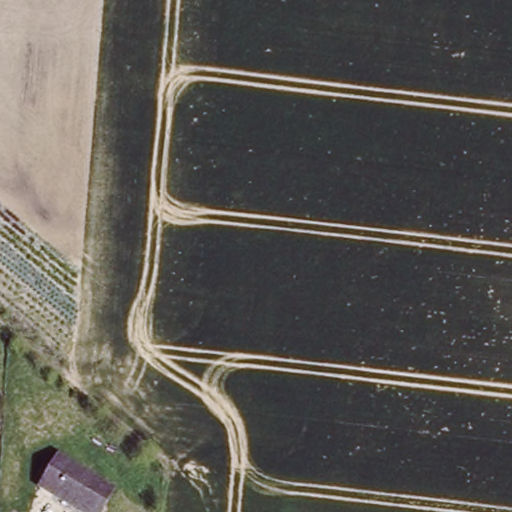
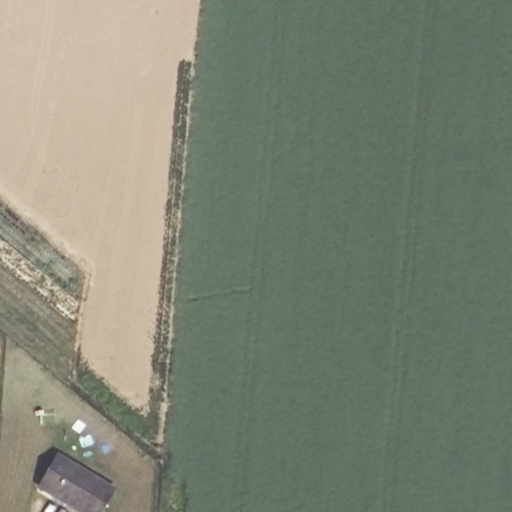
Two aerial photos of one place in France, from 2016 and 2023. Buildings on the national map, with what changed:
unchanged [(96,512),(84,512),(41,487),(58,458),(110,489),(96,512)]

